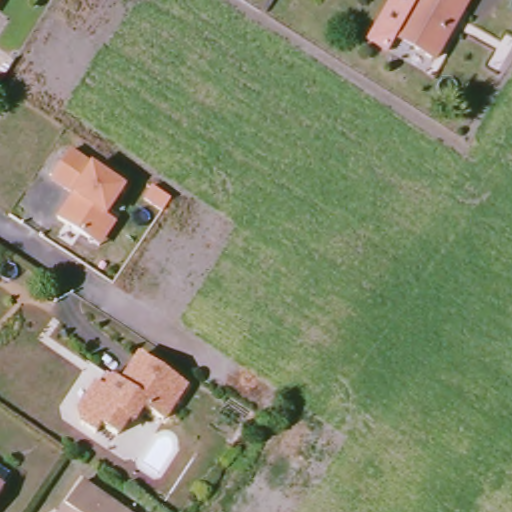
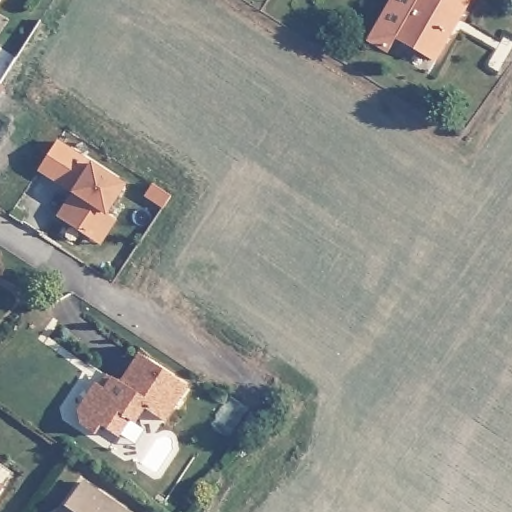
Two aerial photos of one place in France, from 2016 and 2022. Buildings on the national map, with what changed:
unchanged [(436,58),(399,34),(421,0),(475,0),(436,58)]
unchanged [(115,220),(100,244),(54,215),(69,191),(49,177),(68,147),(90,160),(126,182),(106,213),(115,220)]
unchanged [(166,420),(147,408),(136,421),(132,418),(120,433),(105,423),(98,431),(84,421),(81,408),(100,382),(109,369),(120,376),(129,377),(145,355),(190,386),(166,420)]
unchanged [(0,502),(0,483),(10,489),(0,502)]
unchanged [(129,512),(67,512),(86,483),(129,512)]

